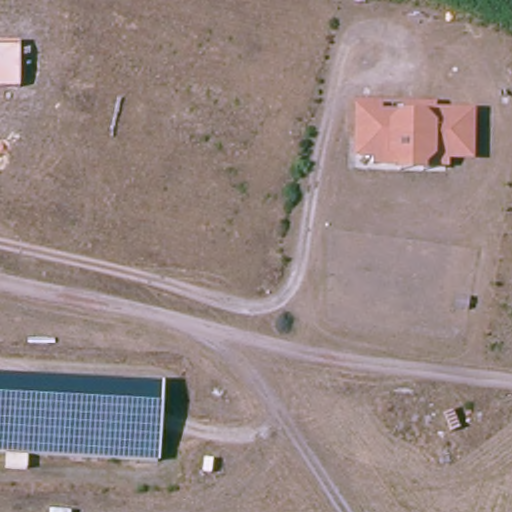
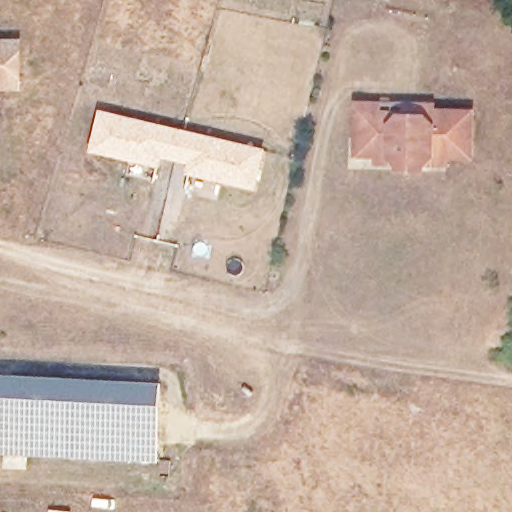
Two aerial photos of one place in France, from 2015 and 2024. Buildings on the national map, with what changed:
new [(0,90),(0,40),(22,40),(24,90),(0,90)]
unchanged [(397,162),(376,162),(376,153),(357,153),(357,136),(358,101),(378,102),(378,109),(401,109),(401,102),(411,102),(432,103),(431,109),(470,110),(469,155),(444,154),(444,163),(422,162),(421,169),(397,168),(397,162)]
new [(98,108),(266,148),(256,191),(185,173),(186,165),(162,158),(159,167),(87,151),(98,108)]
unchanged [(160,385),(157,462),(0,455),(0,378),(160,385)]
unchanged [(5,458),(26,459),(26,471),(5,470),(5,458)]

